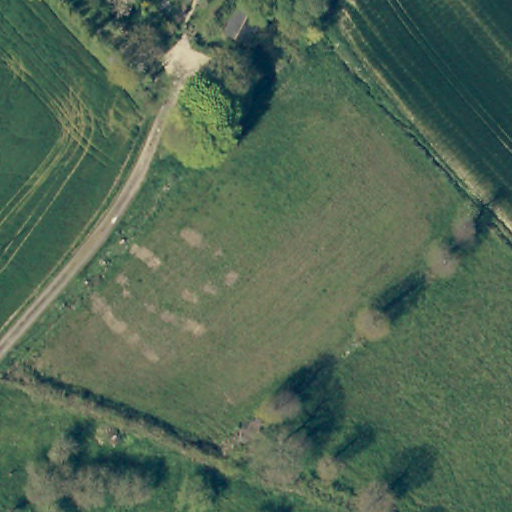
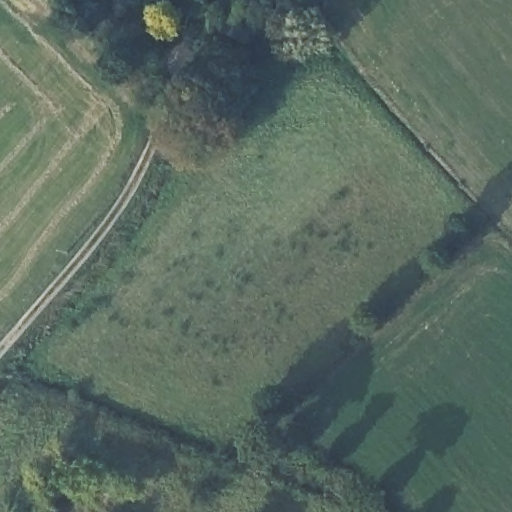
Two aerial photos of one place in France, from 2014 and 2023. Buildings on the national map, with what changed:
unchanged [(258,66),(230,49),(247,21),(275,37),(258,66)]

